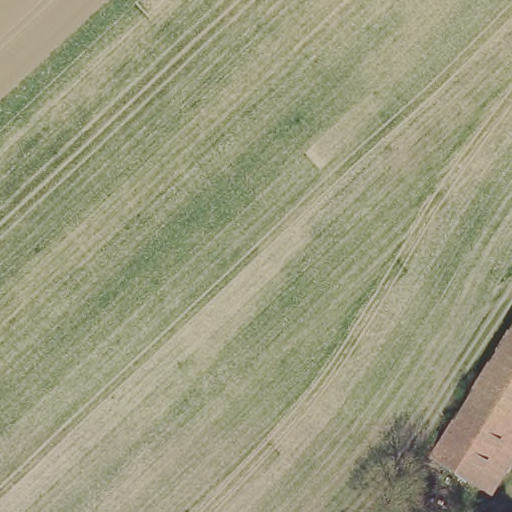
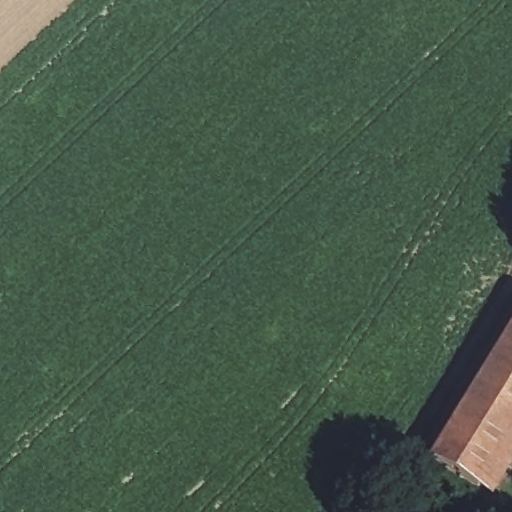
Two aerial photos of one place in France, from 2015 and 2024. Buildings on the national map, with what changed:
unchanged [(438,458),(512,341),(512,448),(487,488),(438,458)]

